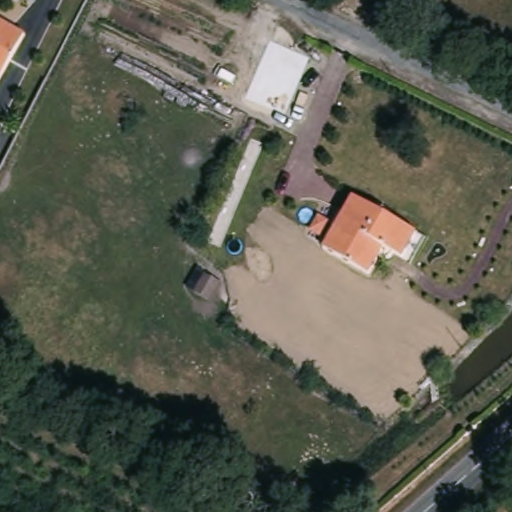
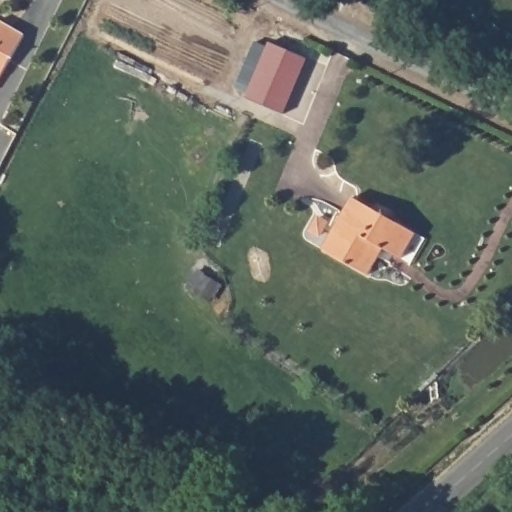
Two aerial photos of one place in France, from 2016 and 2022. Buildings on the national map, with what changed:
unchanged [(3,78),(0,82),(0,18),(28,34),(3,78)]
new [(308,57),(284,114),(246,96),(248,91),(235,86),(244,64),(257,70),(269,42),(308,57)]
unchanged [(403,257),(386,248),(370,274),(328,249),(356,198),(419,233),(403,257)]
unchanged [(325,237),(312,230),(322,217),(334,224),(325,237)]
unchanged [(209,300),(194,293),(203,275),(218,282),(209,300)]

